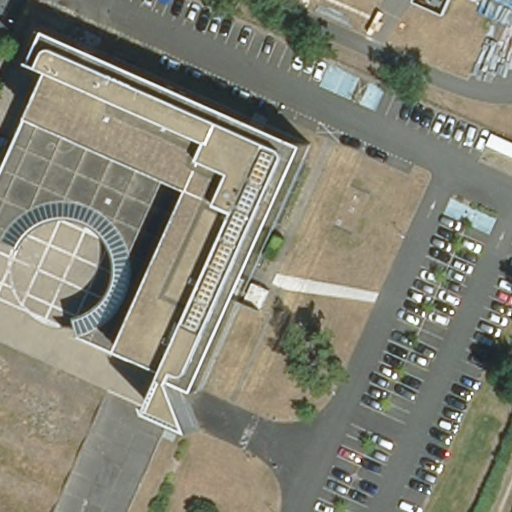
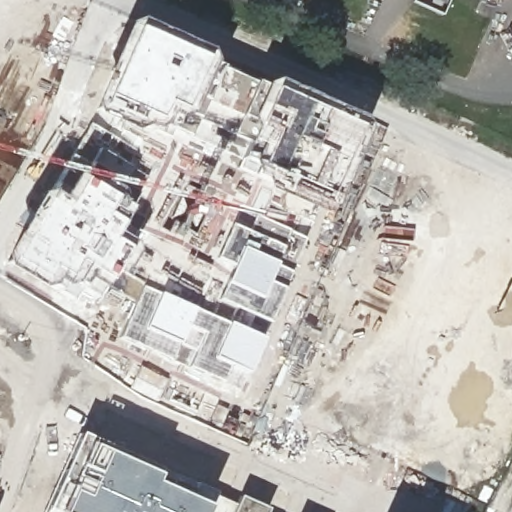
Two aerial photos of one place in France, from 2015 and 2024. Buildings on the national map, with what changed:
new [(209,62),(208,66),(250,84),(259,87),(272,83),(350,118),(359,122),(363,127),(329,211),(323,214),(315,215),(305,211),(260,192),(255,177),(142,124),(129,132),(95,117),(89,106),(124,27),(135,22),(205,53),(209,62)]
demolished [(155,408),(170,374),(81,335),(77,322),(83,321),(89,319),(94,317),(100,313),(104,310),(109,306),(113,301),(116,296),(119,290),(121,285),(123,278),(124,272),(124,267),(124,261),(123,255),(121,249),(119,243),(116,237),(113,232),(109,228),(105,224),(100,220),(95,217),(89,214),(84,212),(78,210),(72,209),(66,209),(60,210),(54,211),(48,212),(42,215),(37,217),(32,221),(27,225),(23,229),(19,234),(16,239),(14,245),(0,239),(0,179),(49,66),(36,61),(50,29),(309,141),(250,278),(270,287),(261,308),(241,299),(202,387),(181,378),(199,428),(173,417),(155,408)]
new [(142,124),(255,177),(260,192),(305,211),(304,240),(254,217),(246,231),(230,225),(214,260),(231,267),(224,283),(216,300),(232,307),(225,323),(158,293),(142,287),(112,273),(123,252),(107,243),(126,211),(71,177),(57,201),(46,195),(95,117),(129,132),(142,124)]
new [(107,243),(123,252),(112,273),(105,284),(103,283),(100,291),(97,289),(94,300),(75,289),(47,289),(35,292),(1,271),(36,197),(46,195),(57,201),(71,177),(126,211),(107,243)]
new [(289,272),(281,288),(266,324),(251,317),(242,331),(260,340),(245,374),(238,390),(221,383),(187,368),(119,337),(142,287),(158,293),(225,323),(232,307),(216,300),(224,283),(231,267),(214,260),(230,225),(246,231),(254,217),(304,240),(289,272)]
new [(211,495),(202,507),(205,508),(203,512),(44,512),(78,436),(211,495)]
new [(203,512),(205,508),(202,507),(211,495),(237,506),(235,512),(203,512)]
new [(267,511),(267,512),(235,512),(240,499),(267,511)]

